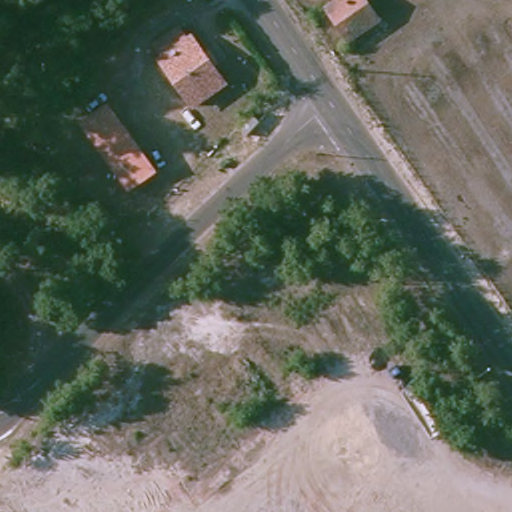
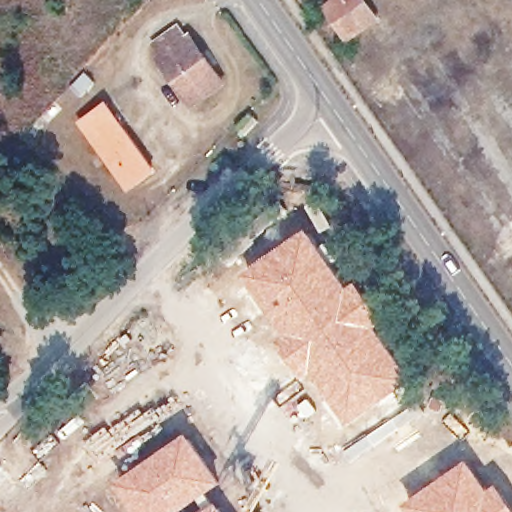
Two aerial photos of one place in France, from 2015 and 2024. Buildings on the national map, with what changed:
unchanged [(322,10),(337,0),(367,0),(361,5),(373,24),(345,44),(322,10)]
unchanged [(400,10),(393,0),(408,0),(410,3),(400,10)]
unchanged [(190,109),(158,64),(162,60),(153,45),(173,30),(182,44),(189,40),(220,86),(190,109)]
unchanged [(125,194),(81,127),(110,104),(123,126),(152,172),(147,177),(125,194)]
new [(308,229),(349,288),(359,281),(386,324),(380,327),(414,384),(346,430),(311,377),(305,381),(275,339),(281,334),(243,275),(308,229)]
new [(188,434),(223,484),(183,512),(135,512),(116,486),(188,434)]
new [(468,459),(491,491),(499,485),(512,503),(512,512),(407,512),(403,507),(468,459)]
new [(217,502),(225,512),(203,512),(217,502)]

